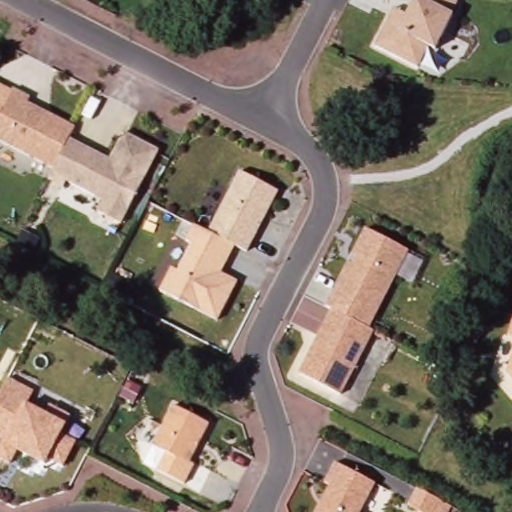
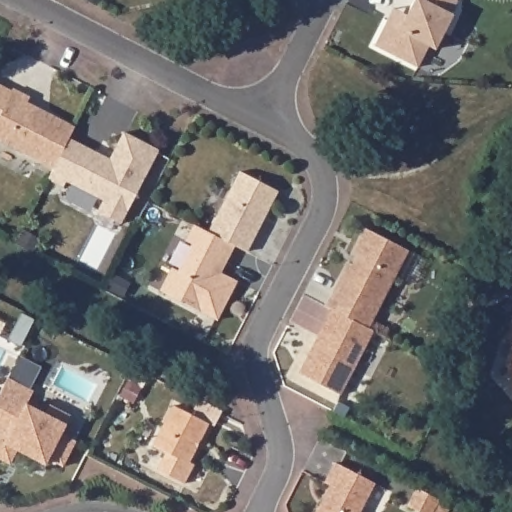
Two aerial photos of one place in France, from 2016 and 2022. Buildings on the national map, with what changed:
unchanged [(458,3),(452,14),(454,15),(436,50),(429,46),(418,68),(376,46),(389,19),(395,9),(408,15),(417,0),(458,0),(458,3)]
unchanged [(54,168),(0,140),(0,115),(13,88),(30,97),(28,102),(75,127),(69,138),(54,168)]
unchanged [(159,150),(121,224),(98,212),(104,200),(67,181),(64,187),(48,179),(54,168),(69,138),(95,151),(110,159),(124,132),(159,150)]
unchanged [(240,171),(278,190),(247,251),(234,245),(209,232),(240,171)]
unchanged [(234,245),(222,274),(234,281),(216,325),(158,292),(191,227),(234,245)]
unchanged [(369,328),(351,319),(332,309),(326,306),(366,228),(408,250),(369,328)]
unchanged [(299,373),(332,309),(351,319),(369,328),(373,330),(340,394),(299,373)]
unchanged [(34,390),(27,404),(46,413),(50,404),(71,415),(61,433),(76,441),(63,465),(48,458),(45,463),(17,449),(10,463),(0,458),(0,394),(8,377),(34,390)]
unchanged [(153,445),(174,405),(210,423),(189,464),(153,445)]
unchanged [(325,482),(335,462),(375,483),(361,512),(317,512),(330,485),(325,482)]
unchanged [(440,499),(433,512),(420,512),(408,505),(417,488),(427,493),(440,499)]

